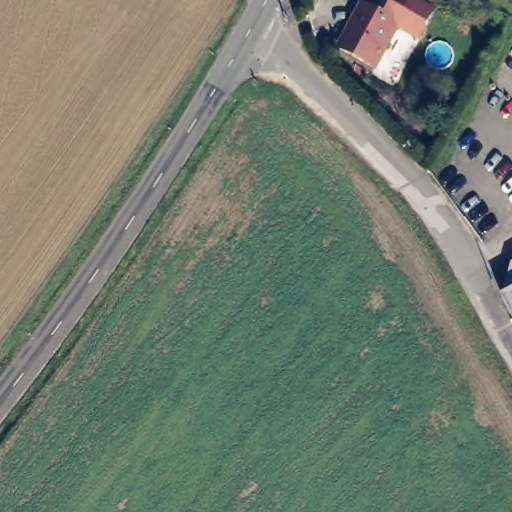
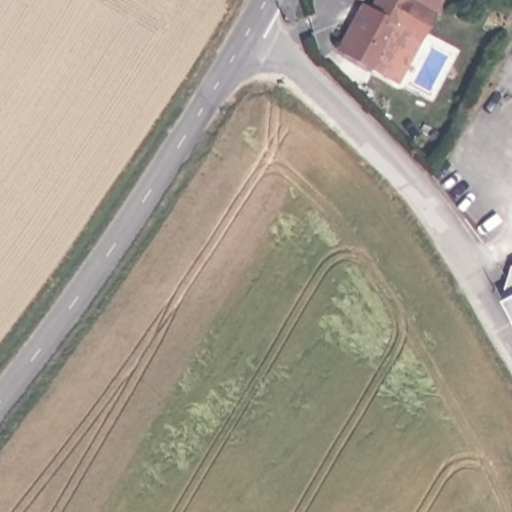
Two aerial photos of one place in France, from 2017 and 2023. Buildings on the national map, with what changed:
unchanged [(337,52),(355,21),(360,9),(367,11),(372,14),(379,0),(402,0),(410,5),(373,71),(337,52)]
unchanged [(500,291),(505,288),(510,262),(512,261),(512,316),(502,296),(500,291)]

